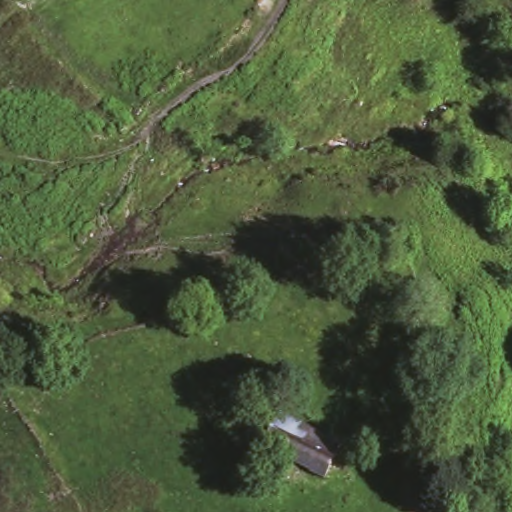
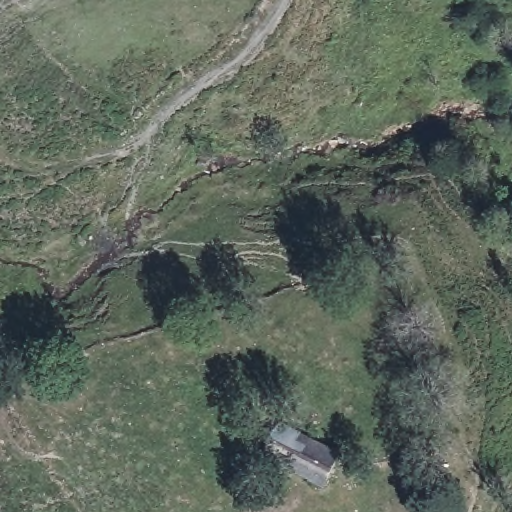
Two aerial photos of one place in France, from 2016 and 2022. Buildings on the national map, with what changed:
unchanged [(325,447),(352,462),(333,496),(269,460),(289,426),(325,447)]

